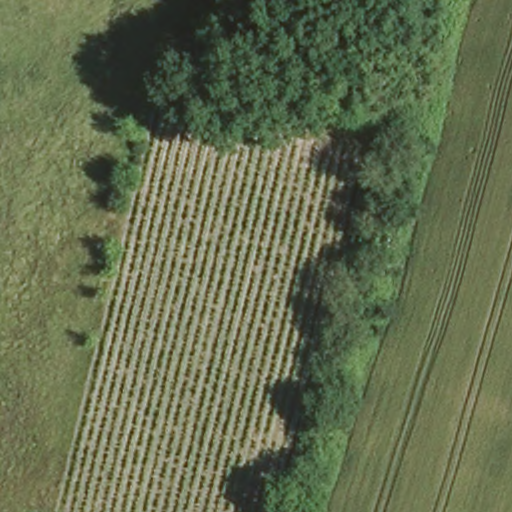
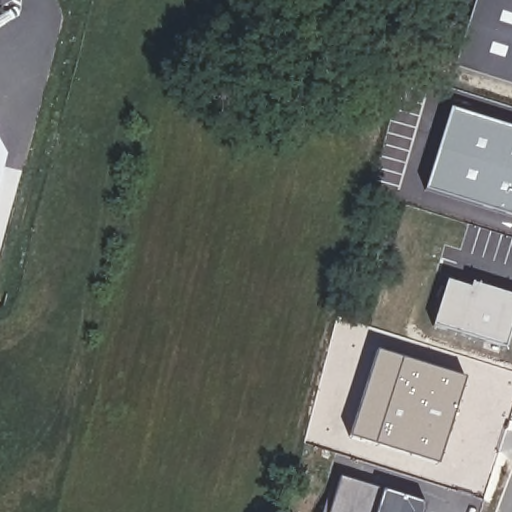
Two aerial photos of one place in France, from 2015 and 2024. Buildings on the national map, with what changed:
new [(456,20),(462,0),(512,0),(512,86),(456,69),(470,24),(456,20)]
new [(451,110),(512,129),(512,217),(425,191),(451,110)]
new [(8,156),(0,189),(0,142),(8,156)]
new [(512,299),(512,335),(509,347),(436,325),(450,279),(512,299)]
new [(438,464),(349,438),(377,351),(465,378),(438,464)]
new [(343,477),(429,503),(426,512),(331,512),(343,477)]

